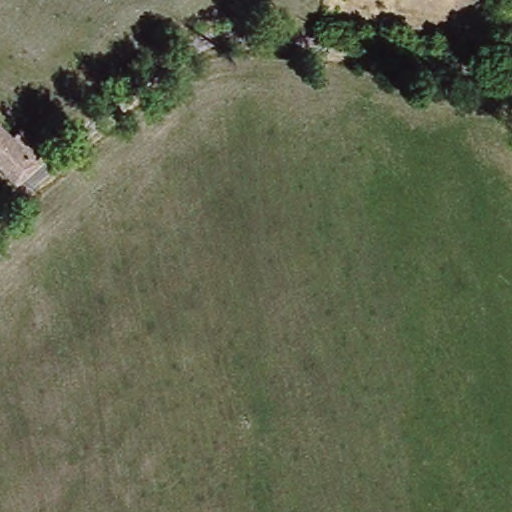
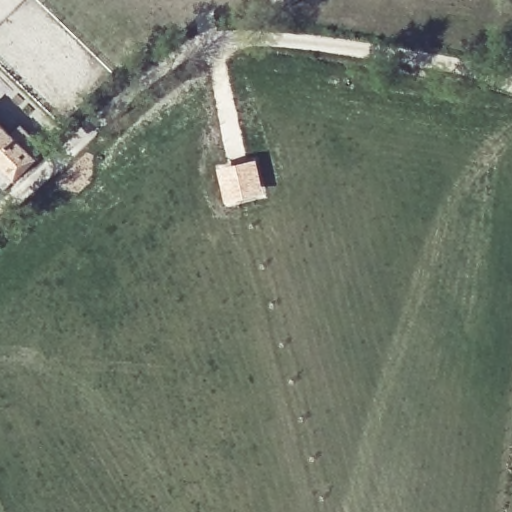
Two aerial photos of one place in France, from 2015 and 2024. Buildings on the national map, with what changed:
unchanged [(0,159),(0,118),(12,130),(23,118),(55,147),(20,179),(0,159)]
new [(257,159),(266,197),(225,207),(218,168),(257,159)]

